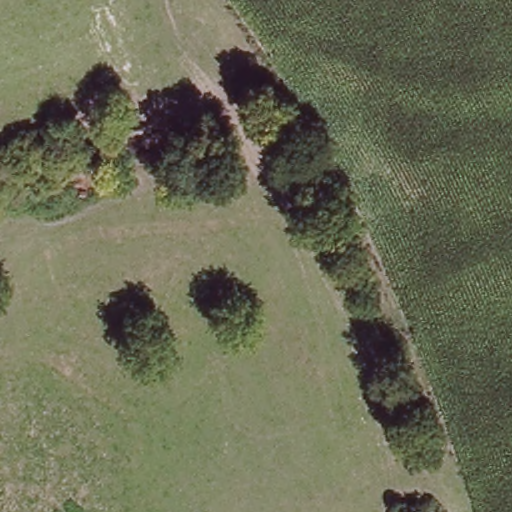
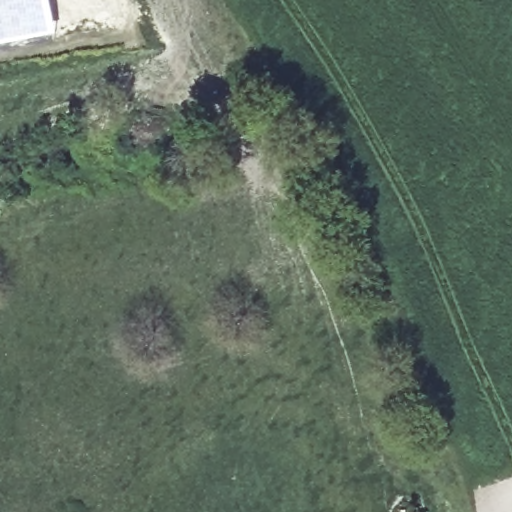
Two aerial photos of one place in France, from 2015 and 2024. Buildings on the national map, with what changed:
new [(52,0),(58,30),(0,42),(0,0),(52,0)]

